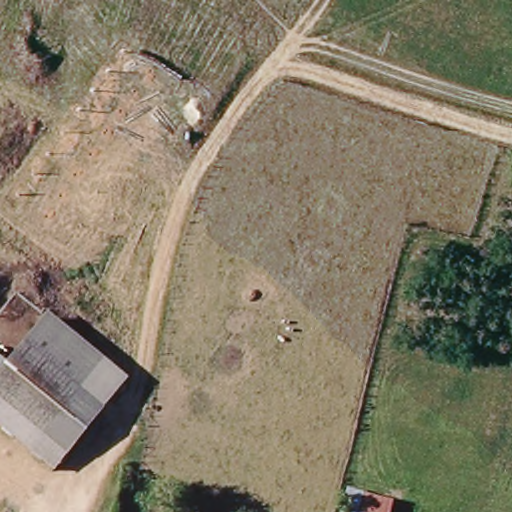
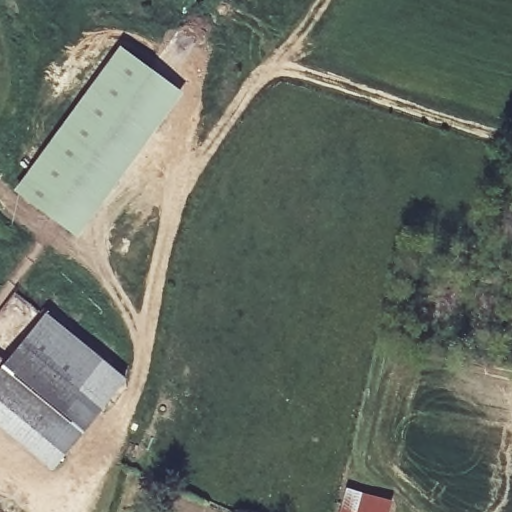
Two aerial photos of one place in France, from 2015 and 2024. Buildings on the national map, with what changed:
new [(126,57),(170,89),(65,232),(21,198),(126,57)]
unchanged [(12,361),(48,317),(103,361),(79,393),(101,413),(55,469),(0,425),(0,353),(12,361)]
unchanged [(103,361),(128,381),(101,413),(79,393),(103,361)]
unchanged [(347,491),(392,503),(389,512),(341,512),(347,491)]

